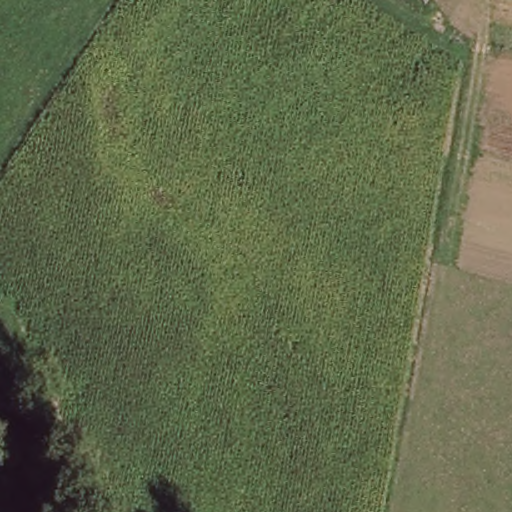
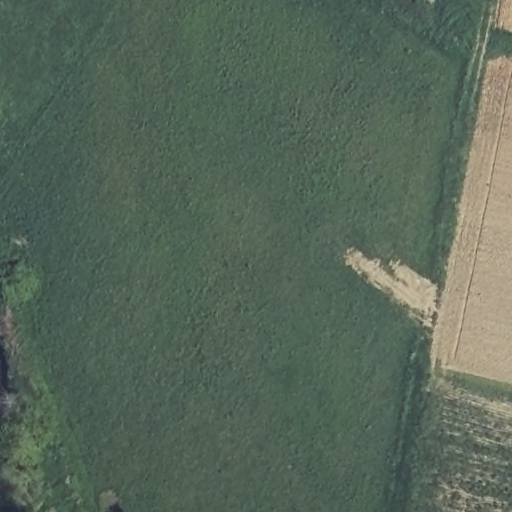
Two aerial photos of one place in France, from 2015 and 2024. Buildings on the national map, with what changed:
[]

